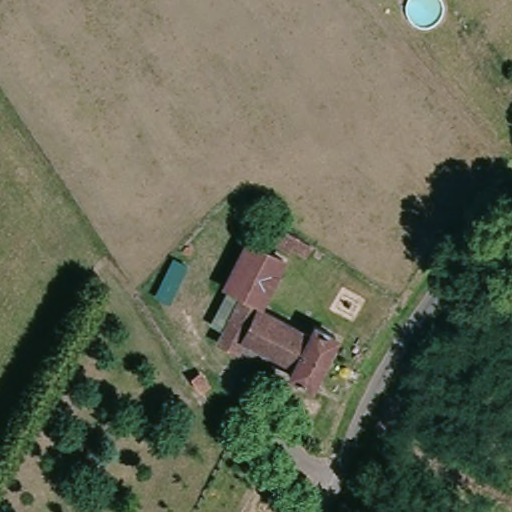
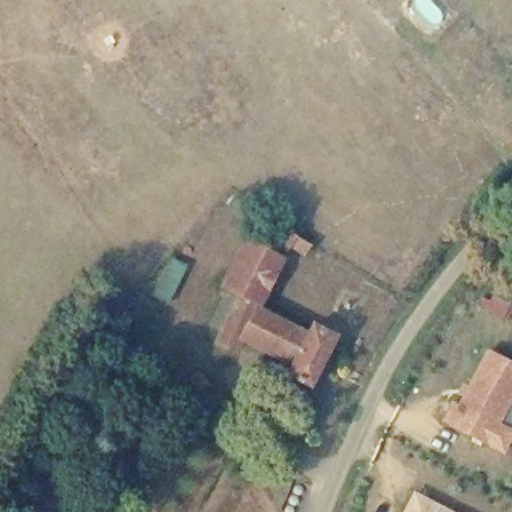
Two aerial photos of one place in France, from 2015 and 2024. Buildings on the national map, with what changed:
unchanged [(289,377),(292,366),(244,342),(239,352),(214,337),(219,327),(209,322),(228,289),(222,285),(247,236),(288,254),(267,305),(309,327),(312,320),(344,333),(318,386),(289,377)]
demolished [(191,363),(205,341),(223,356),(206,381),(191,363)]
new [(512,363),(512,400),(496,433),(474,422),(467,435),(442,422),(453,401),(458,405),(487,348),(512,363)]
new [(413,491),(456,512),(402,512),(413,491)]

